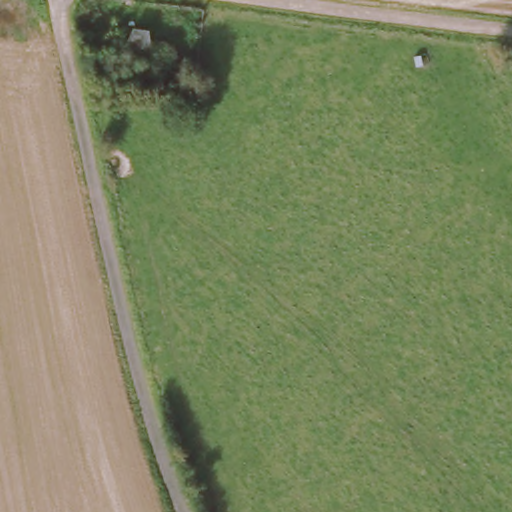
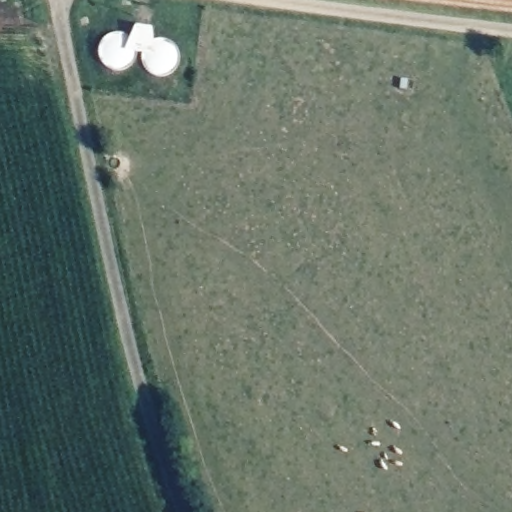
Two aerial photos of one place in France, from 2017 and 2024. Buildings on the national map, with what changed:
unchanged [(137,61),(135,71),(127,78),(117,81),(109,79),(102,73),(98,63),(100,53),(108,44),(120,42),(129,45),(135,54),(135,56),(137,61)]
unchanged [(148,56),(153,46),(162,45),(172,48),(177,56),(180,65),(177,74),(170,81),(160,84),(152,82),(145,76),(141,66),(142,56),(148,56)]

